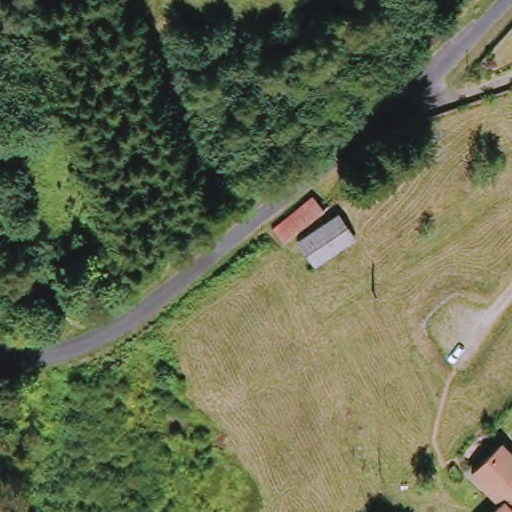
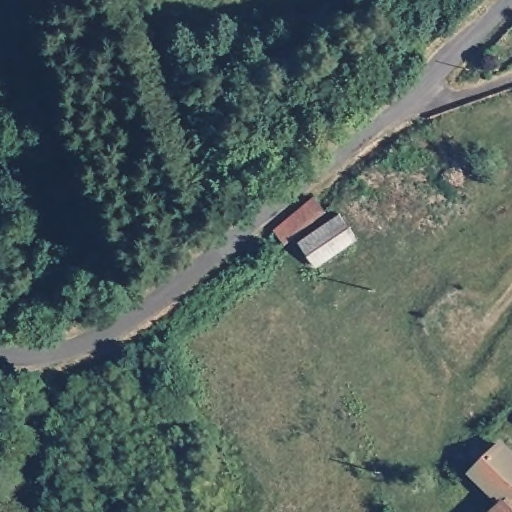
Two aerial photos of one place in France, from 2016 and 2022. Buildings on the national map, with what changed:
unchanged [(333,204),(290,237),(279,222),(323,189),(333,204)]
unchanged [(288,247),(328,218),(346,244),(306,274),(288,247)]
unchanged [(470,472),(498,444),(512,459),(512,492),(499,504),(470,472)]
unchanged [(512,492),(512,512),(490,512),(499,504),(512,492)]

